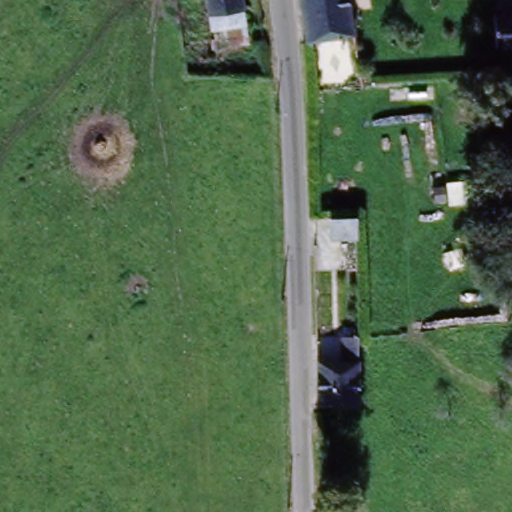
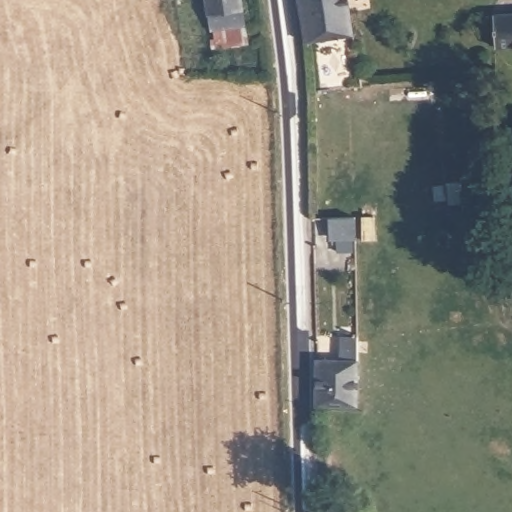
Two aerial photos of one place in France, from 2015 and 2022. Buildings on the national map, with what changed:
unchanged [(209,0),(238,0),(244,46),(231,46),(229,34),(213,34),(209,0)]
unchanged [(347,0),(351,38),(303,40),(299,0),(347,0)]
unchanged [(484,20),(512,18),(512,53),(487,55),(484,20)]
unchanged [(316,411),(313,371),(341,370),(340,357),(348,357),(348,353),(354,353),(359,408),(316,411)]

